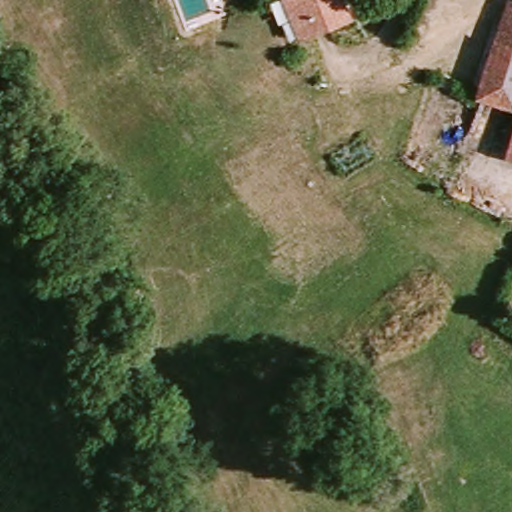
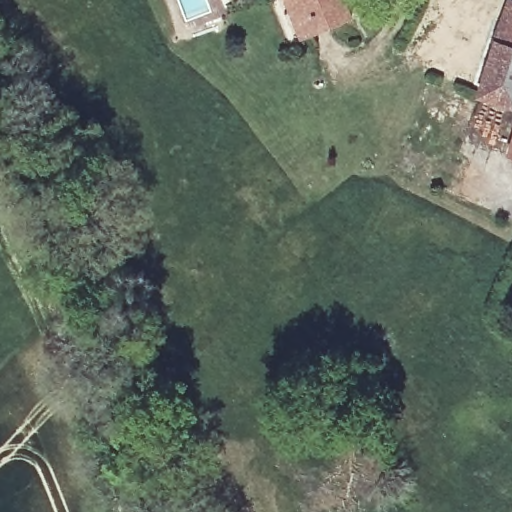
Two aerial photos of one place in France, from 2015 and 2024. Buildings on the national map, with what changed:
unchanged [(342,0),(351,23),(308,40),(299,43),(282,0),(342,0)]
unchanged [(477,102),(493,46),(508,5),(512,6),(512,112),(477,102)]
unchanged [(507,159),(512,139),(512,160),(507,159)]

